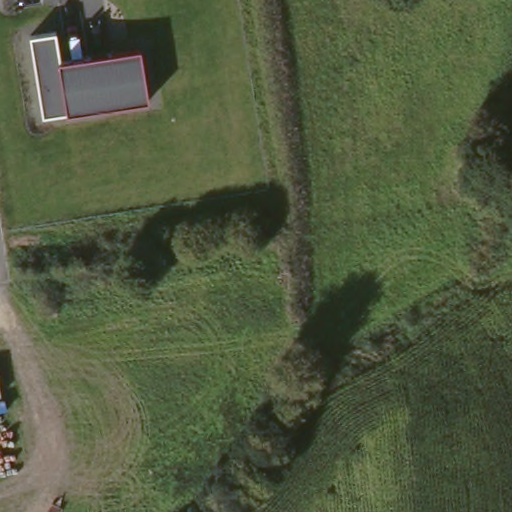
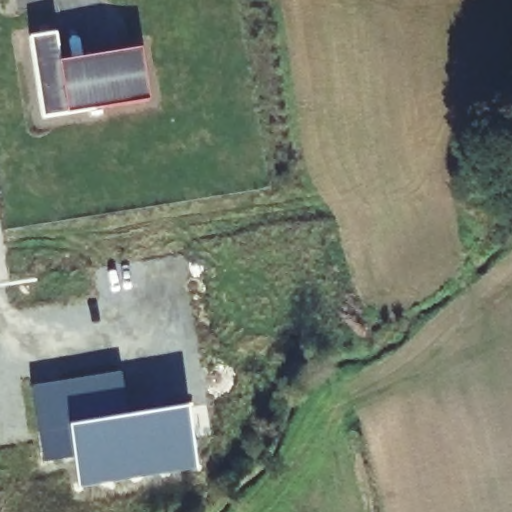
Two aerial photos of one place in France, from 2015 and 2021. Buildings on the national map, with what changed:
unchanged [(61,60),(140,48),(148,100),(42,116),(29,37),(56,32),(61,60)]
new [(123,373),(130,418),(190,408),(199,469),(81,488),(76,459),(46,463),(34,387),(123,373)]

